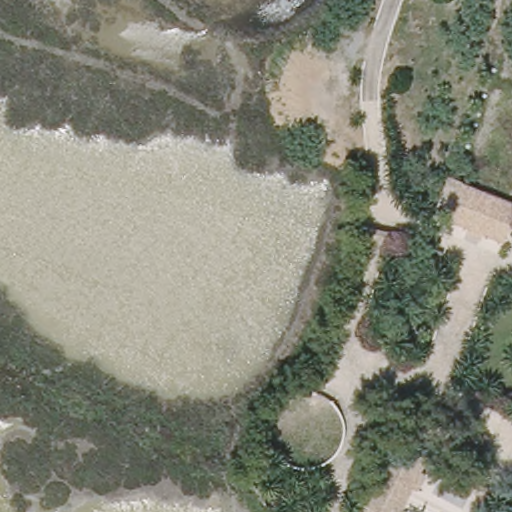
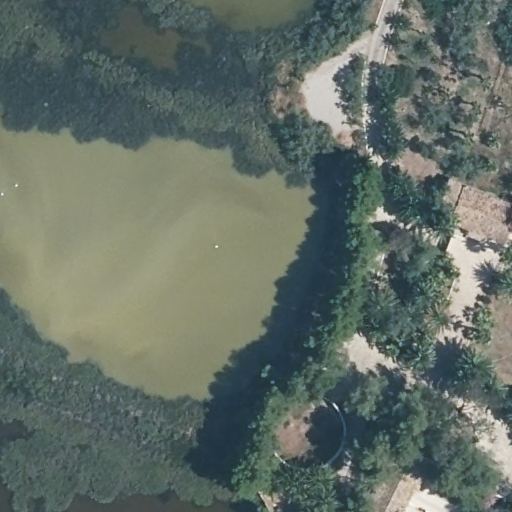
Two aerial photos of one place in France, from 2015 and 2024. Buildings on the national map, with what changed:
unchanged [(512,205),(512,218),(497,249),(441,220),(461,182),(512,205)]
unchanged [(391,442),(425,457),(398,512),(378,512),(362,504),(391,442)]
unchanged [(378,512),(358,512),(362,504),(378,512)]

